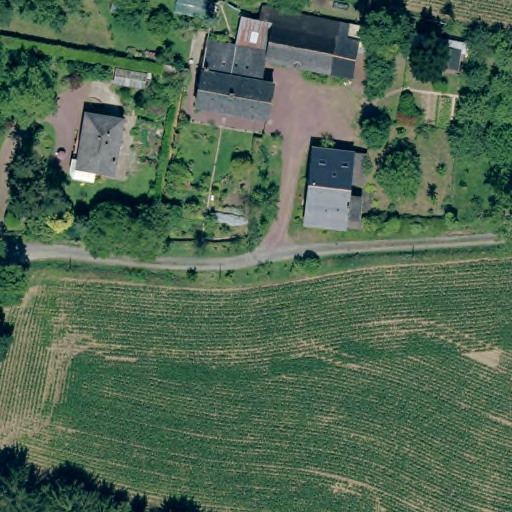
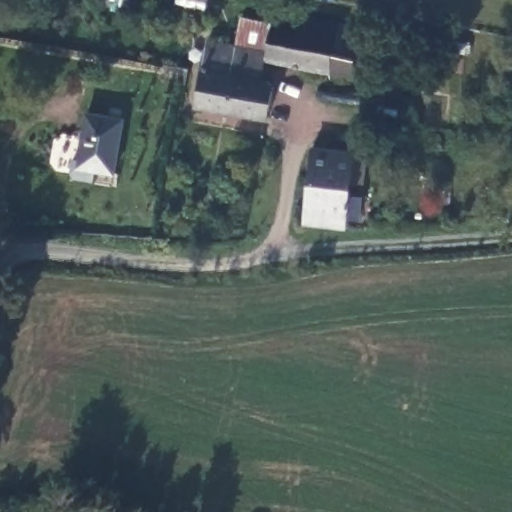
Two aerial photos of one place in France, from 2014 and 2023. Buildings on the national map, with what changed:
unchanged [(350,52),(362,54),(353,89),(266,71),(260,94),(275,98),(267,133),(198,121),(208,59),(234,65),(239,66),(248,30),(263,33),(266,22),(291,28),(354,42),(350,52)]
unchanged [(115,171),(98,167),(96,178),(75,175),(72,170),(74,156),(80,157),(88,111),(126,118),(115,171)]
unchanged [(338,222),(330,222),(330,227),(295,221),(303,150),(343,154),(352,155),(350,185),(338,184),(337,198),(349,202),(348,219),(339,217),(338,222)]

